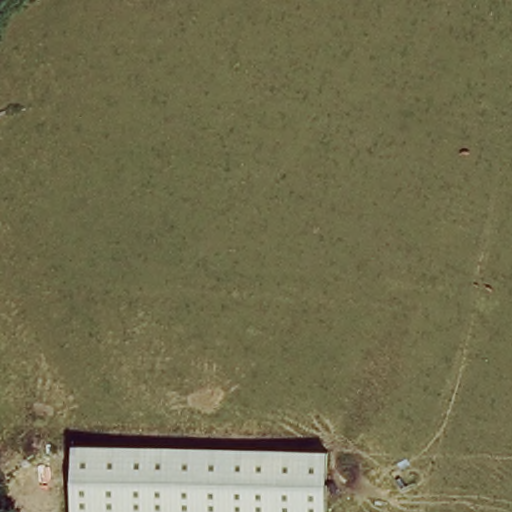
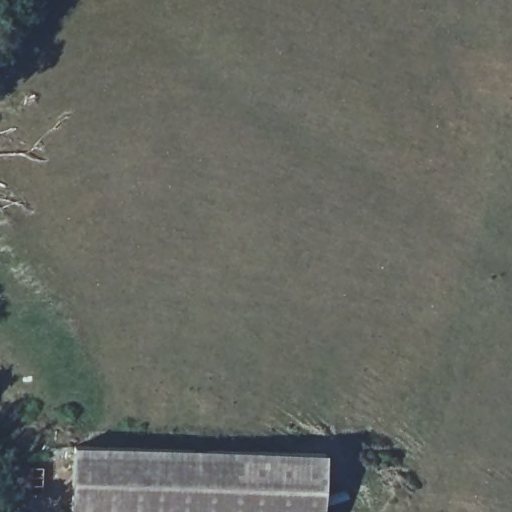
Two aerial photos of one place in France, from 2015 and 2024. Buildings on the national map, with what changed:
unchanged [(325,512),(72,512),(76,443),(328,452),(325,512)]

